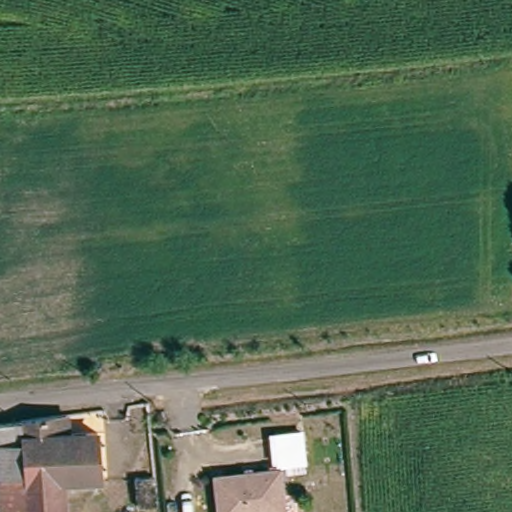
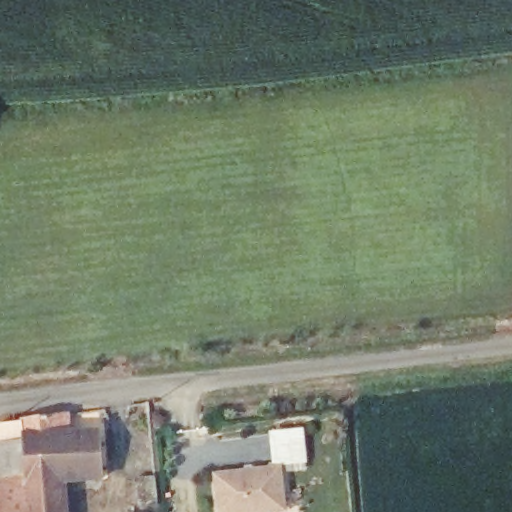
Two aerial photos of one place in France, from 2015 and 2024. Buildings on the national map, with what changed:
unchanged [(8,494),(3,451),(1,430),(63,422),(73,421),(74,432),(106,428),(112,475),(70,480),(74,512),(0,512),(0,495),(8,494)]
unchanged [(283,475),(282,467),(275,468),(272,438),(295,436),(298,466),(299,473),(283,475)]
unchanged [(275,472),(278,500),(279,512),(213,512),(210,480),(275,472)]
unchanged [(155,477),(158,506),(139,507),(135,480),(155,477)]

